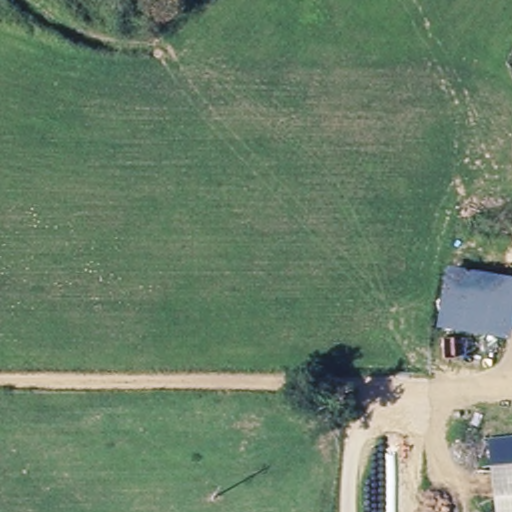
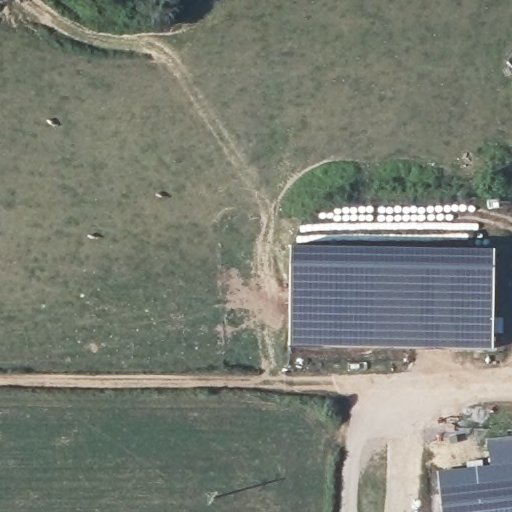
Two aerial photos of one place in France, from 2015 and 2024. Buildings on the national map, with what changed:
new [(288,344),(291,239),(492,241),(492,346),(288,344)]
demolished [(446,271),(512,284),(512,325),(509,343),(435,331),(446,271)]
unchanged [(512,512),(495,512),(490,467),(487,437),(512,434),(512,512)]
new [(495,512),(441,512),(436,472),(490,467),(495,512)]

